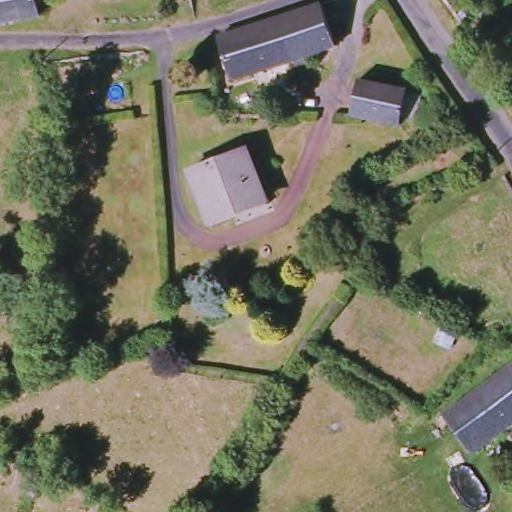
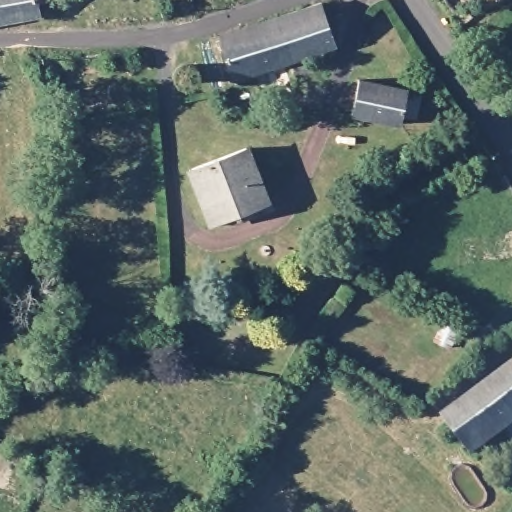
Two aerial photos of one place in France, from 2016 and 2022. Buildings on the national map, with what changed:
unchanged [(55,0),(56,7),(36,11),(38,20),(0,27),(0,0),(55,0)]
unchanged [(323,1),(336,45),(230,79),(214,38),(323,1)]
unchanged [(408,93),(398,128),(353,115),(364,80),(408,93)]
unchanged [(254,151),(267,202),(206,218),(193,166),(254,151)]
unchanged [(512,429),(476,456),(445,414),(512,364),(512,429)]

